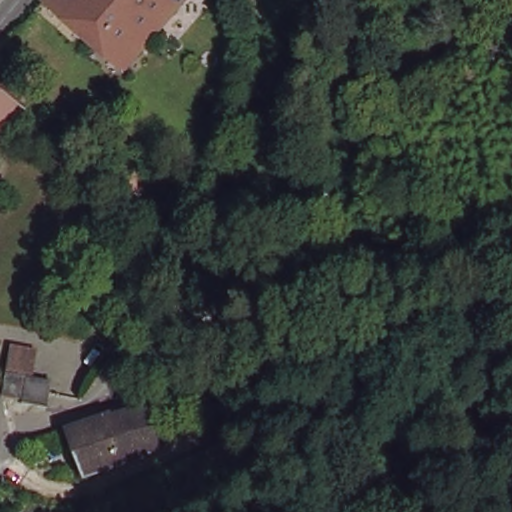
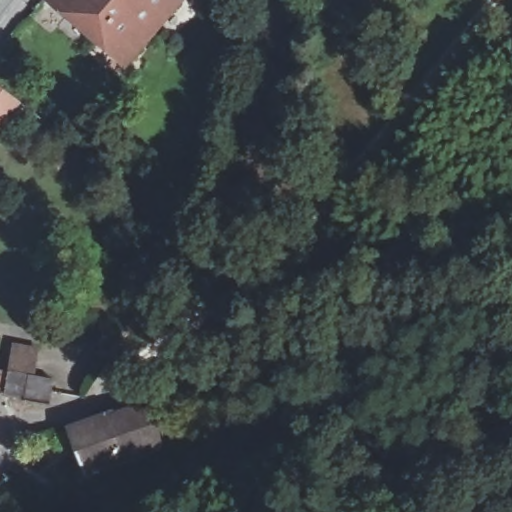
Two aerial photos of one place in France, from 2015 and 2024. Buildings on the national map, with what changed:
unchanged [(54,0),(176,0),(124,61),(54,0)]
unchanged [(0,125),(0,85),(12,95),(19,100),(0,125)]
unchanged [(29,395),(17,395),(13,393),(10,391),(0,383),(0,372),(13,372),(15,346),(35,347),(34,373),(53,375),(53,376),(52,398),(52,400),(30,397),(29,395)]
unchanged [(512,383),(512,417),(497,405),(512,383)]
unchanged [(105,415),(148,408),(160,447),(120,462),(105,415)]
unchanged [(120,462),(85,475),(67,428),(102,416),(105,415),(120,462)]
unchanged [(403,470),(427,443),(465,475),(440,500),(403,470)]

